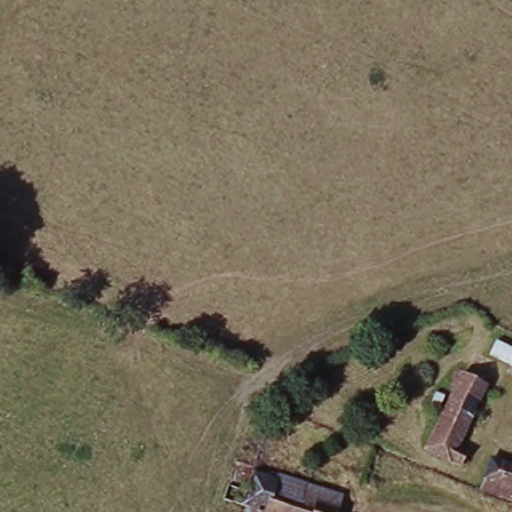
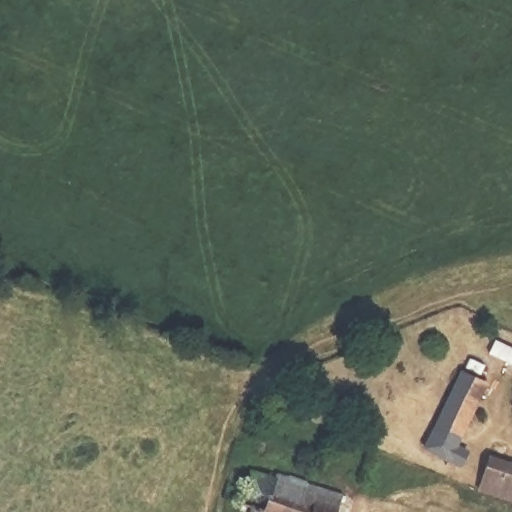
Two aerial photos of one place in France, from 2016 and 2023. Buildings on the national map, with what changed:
unchanged [(464,449),(473,455),(466,470),(425,454),(460,378),(490,392),(464,449)]
unchanged [(512,503),(481,490),(494,464),(512,471),(512,503)]
unchanged [(272,481),(272,476),(347,499),(342,512),(248,512),(249,508),(240,507),(250,476),(272,481)]

